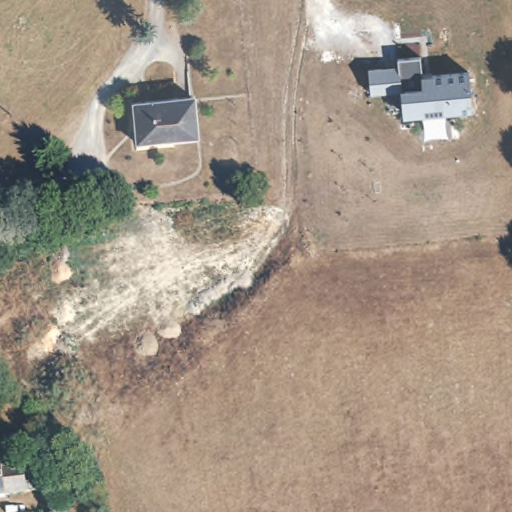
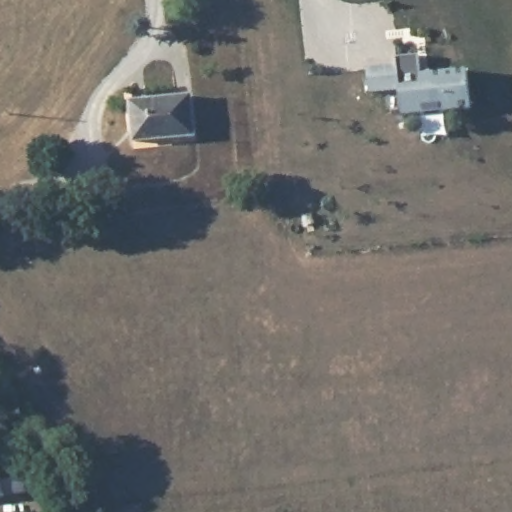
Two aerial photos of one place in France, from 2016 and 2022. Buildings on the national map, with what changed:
unchanged [(396,65),(419,62),(421,82),(467,79),(470,116),(405,122),(403,96),(399,96),(396,65)]
unchanged [(188,101),(191,140),(132,144),(129,106),(188,101)]
unchanged [(64,189),(66,205),(26,209),(25,192),(64,189)]
unchanged [(8,448),(10,448),(12,449),(14,451),(15,452),(17,460),(22,459),(23,464),(32,462),(33,473),(44,472),(46,487),(35,488),(36,495),(0,499),(0,462),(2,461),(2,454),(2,452),(4,450),(6,449),(8,448)]

